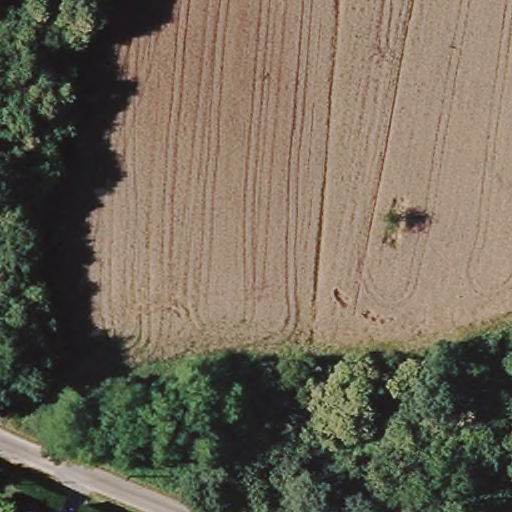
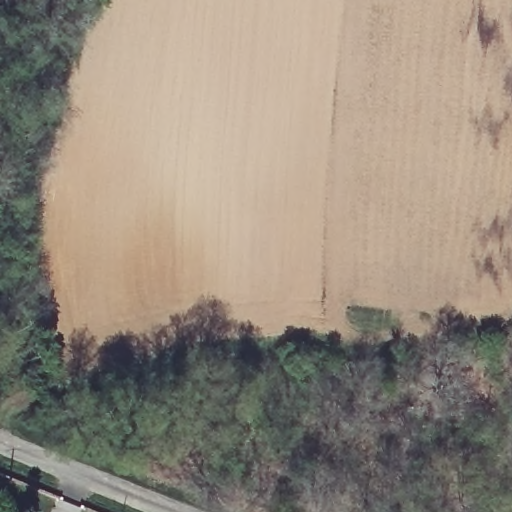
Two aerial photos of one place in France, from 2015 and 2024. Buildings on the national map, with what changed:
[]

